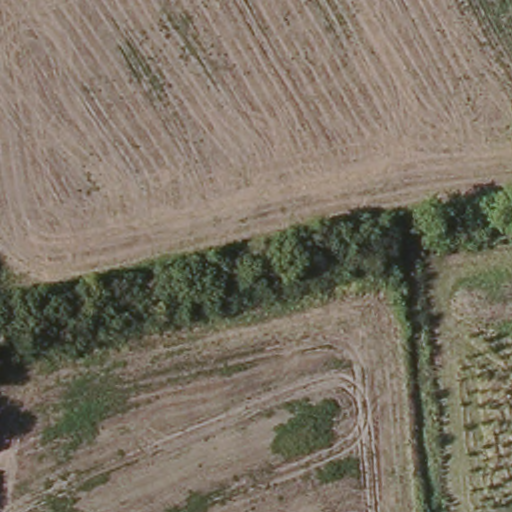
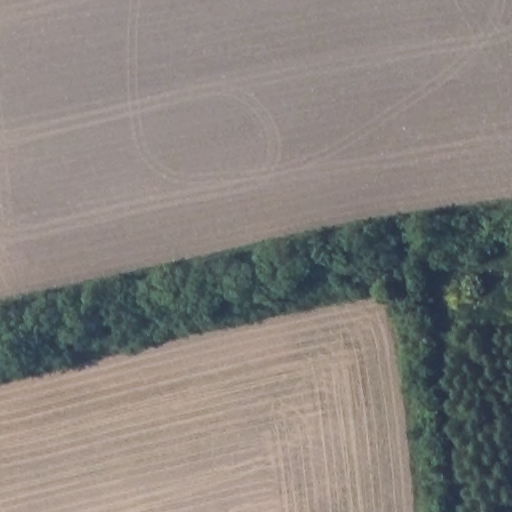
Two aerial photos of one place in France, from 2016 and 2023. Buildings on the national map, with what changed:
[]

